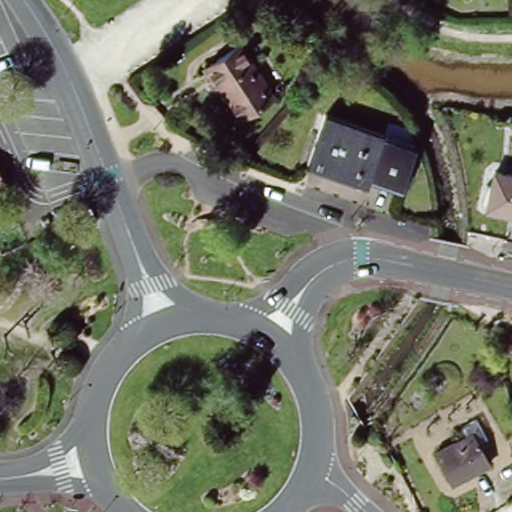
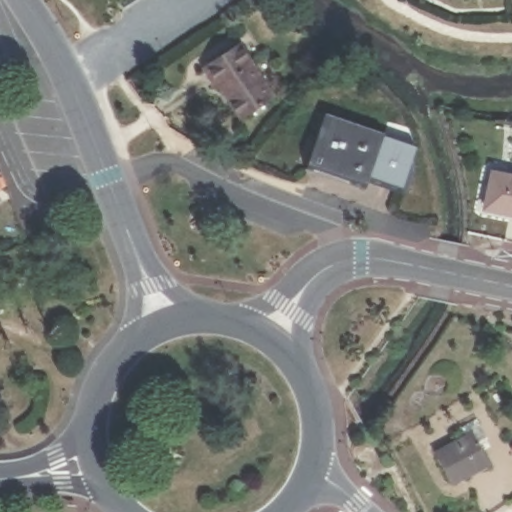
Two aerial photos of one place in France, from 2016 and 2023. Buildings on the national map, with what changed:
unchanged [(271,96),(238,116),(216,82),(213,83),(203,66),(238,44),(271,96)]
unchanged [(384,134),(384,139),(416,150),(401,193),(369,181),(368,186),(310,164),(329,113),(384,134)]
unchanged [(0,193),(0,169),(8,188),(0,193)]
unchanged [(512,214),(486,209),(494,173),(512,177),(512,214)]
unchanged [(448,485),(433,453),(464,436),(459,427),(474,419),(485,439),(476,445),(487,463),(448,485)]
unchanged [(512,450),(512,460),(508,453),(512,450)]

